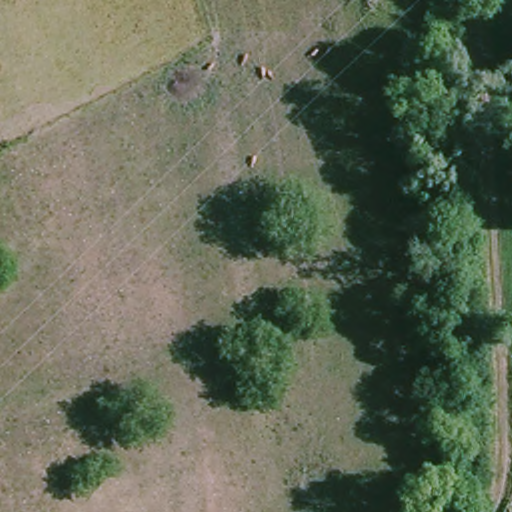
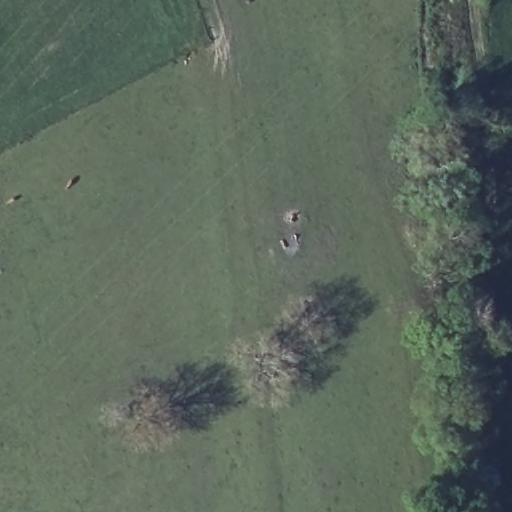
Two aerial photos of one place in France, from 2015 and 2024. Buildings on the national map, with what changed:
[]

